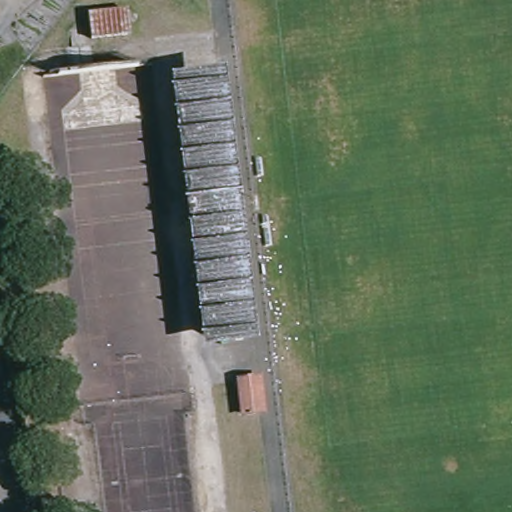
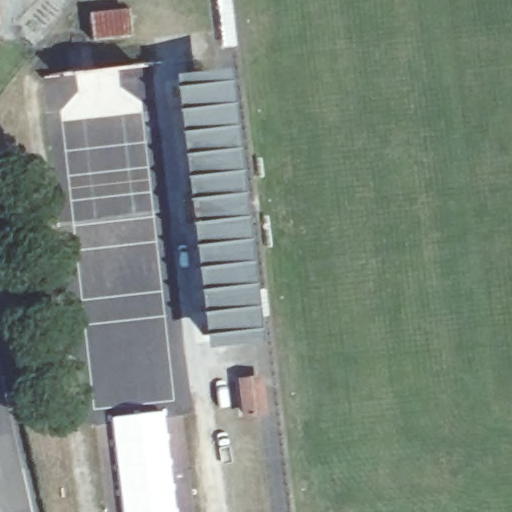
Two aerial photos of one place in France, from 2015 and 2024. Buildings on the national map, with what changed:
unchanged [(122,9),(124,36),(83,39),(81,10),(122,9)]
unchanged [(214,78),(238,330),(197,335),(171,83),(214,78)]
unchanged [(257,376),(261,408),(254,409),(254,413),(248,414),(248,410),(245,410),(242,378),(257,376)]
new [(164,409),(176,512),(122,512),(109,416),(164,409)]

